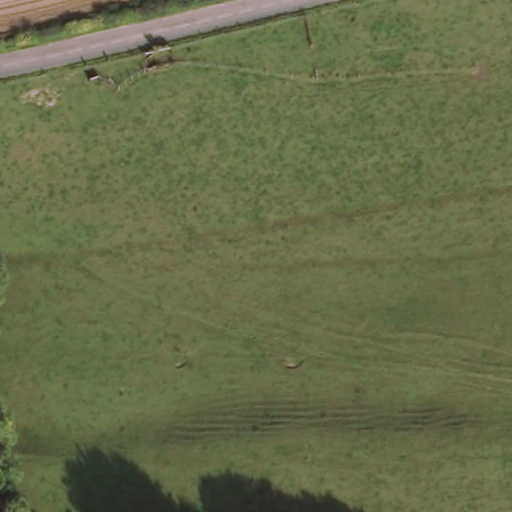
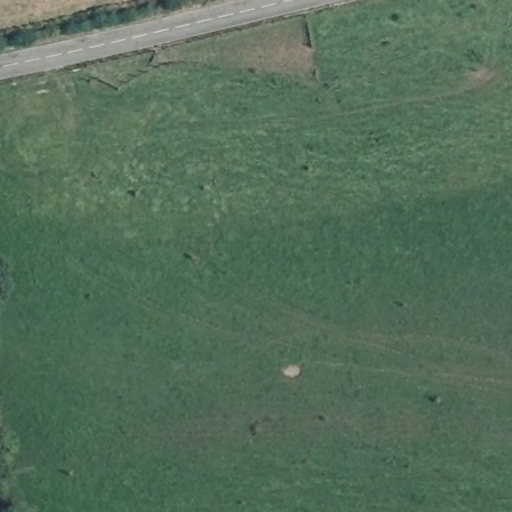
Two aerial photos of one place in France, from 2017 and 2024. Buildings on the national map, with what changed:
[]

